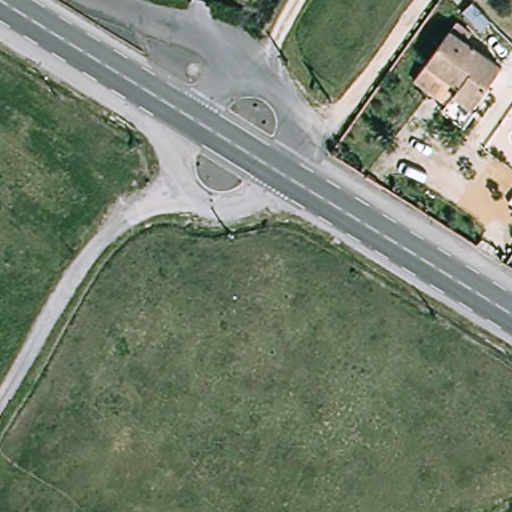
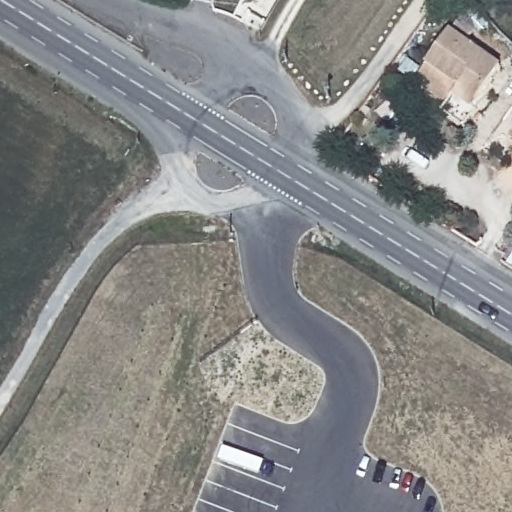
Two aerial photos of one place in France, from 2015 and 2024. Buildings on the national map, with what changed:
unchanged [(470,34),(464,42),(499,67),(464,117),(414,82),(455,23),(470,34)]

